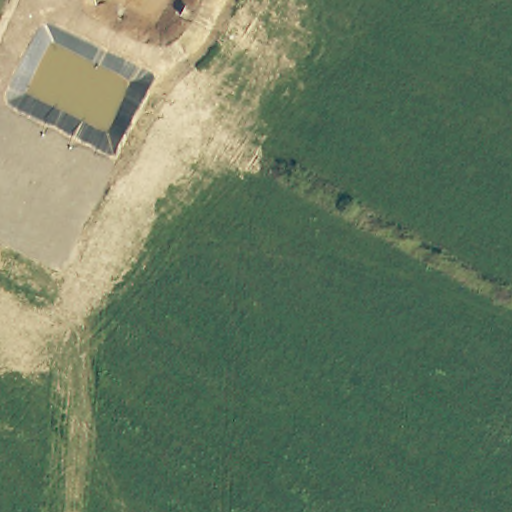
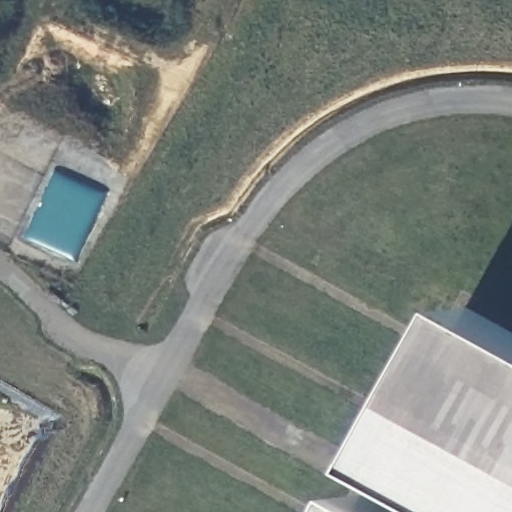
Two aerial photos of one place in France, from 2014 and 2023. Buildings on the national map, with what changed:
new [(470,312),(512,334),(512,512),(360,512),(470,312)]

